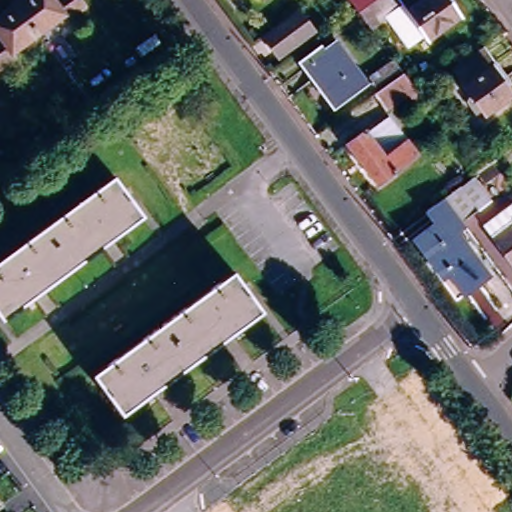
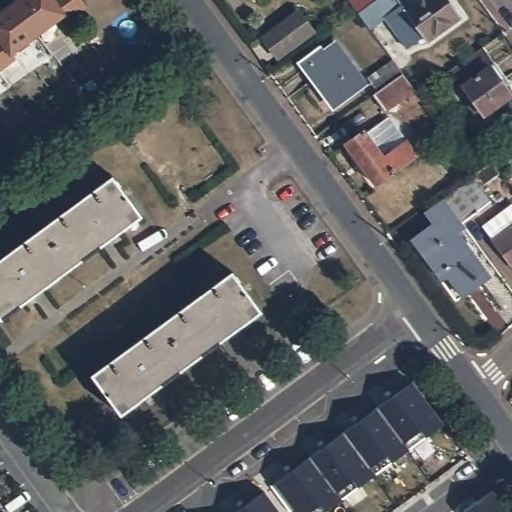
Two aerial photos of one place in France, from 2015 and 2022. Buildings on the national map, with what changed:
unchanged [(2,4),(7,0),(13,0),(39,35),(13,54),(17,60),(0,72),(0,39),(0,14),(7,10),(2,4)]
unchanged [(88,7),(68,21),(65,16),(39,35),(13,0),(83,0),(88,7)]
unchanged [(413,0),(451,0),(462,14),(428,39),(423,31),(406,43),(385,13),(370,24),(358,10),(351,0),(400,0),(405,6),(413,0)]
unchanged [(278,60),(261,37),(300,10),(317,34),(278,60)]
unchanged [(335,105),(307,68),(337,46),(364,84),(335,105)]
unchanged [(503,87),(502,90),(510,102),(482,122),(450,74),(480,53),(503,87)]
unchanged [(405,95),(384,110),(372,94),(378,90),(368,77),(392,60),(402,72),(417,94),(420,97),(411,104),(405,95)]
unchanged [(377,183),(347,142),(366,129),(387,114),(406,140),(417,155),(377,183)]
unchanged [(144,216),(3,319),(0,314),(0,262),(115,178),(144,216)]
unchanged [(465,187),(482,210),(454,231),(458,237),(450,244),(480,286),(455,305),(430,271),(425,275),(405,247),(426,232),(417,220),(436,206),(437,208),(465,187)]
unchanged [(485,232),(512,212),(512,271),(485,232)]
unchanged [(235,273),(263,311),(123,415),(95,376),(235,273)]
new [(413,382),(444,425),(410,450),(379,408),(413,382)]
new [(379,408),(410,450),(377,475),(345,432),(379,408)]
demolished [(351,512),(327,478),(281,512),(251,512),(239,496),(333,425),(395,509),(397,512),(351,512)]
new [(345,432),(377,475),(342,500),(312,457),(345,432)]
new [(342,500),(327,512),(297,512),(276,484),(312,457),(342,500)]
new [(509,512),(464,512),(493,491),(509,512)]
new [(280,512),(238,512),(265,492),(280,512)]
unchanged [(0,508),(0,504),(2,507),(0,508)]

